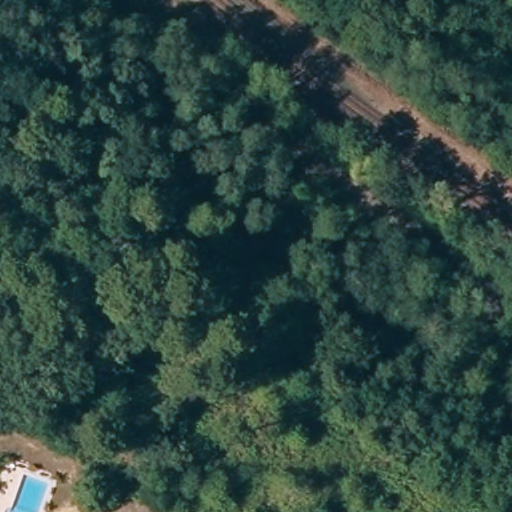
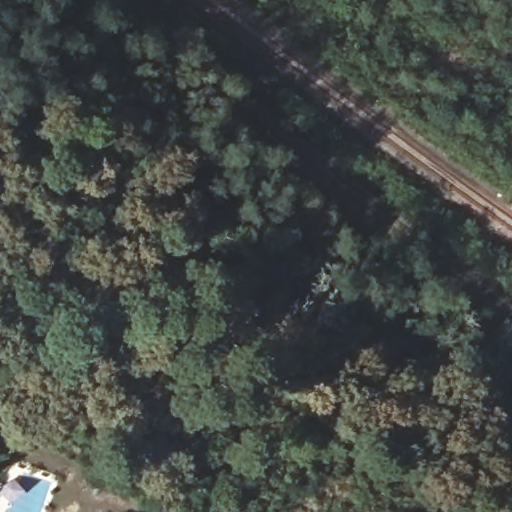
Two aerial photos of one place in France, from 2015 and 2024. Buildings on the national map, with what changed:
[]

